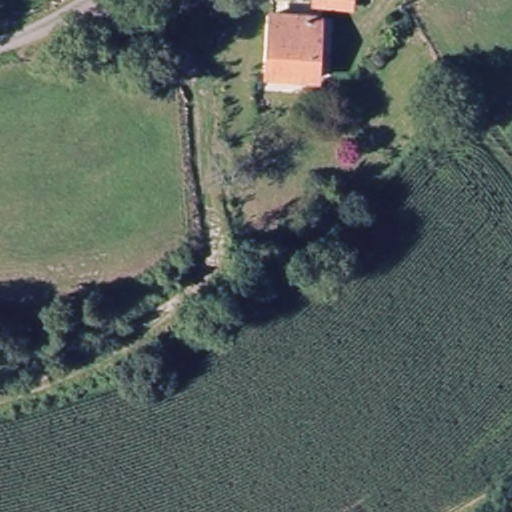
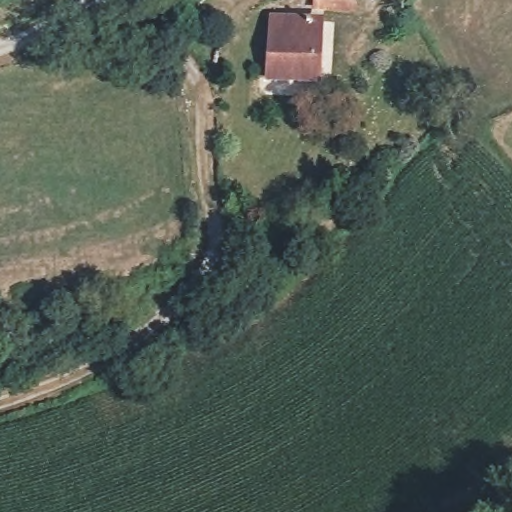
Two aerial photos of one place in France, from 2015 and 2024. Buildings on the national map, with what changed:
unchanged [(320,0),(361,0),(358,13),(319,9),(320,0)]
unchanged [(267,74),(276,16),(322,21),(315,80),(267,74)]

